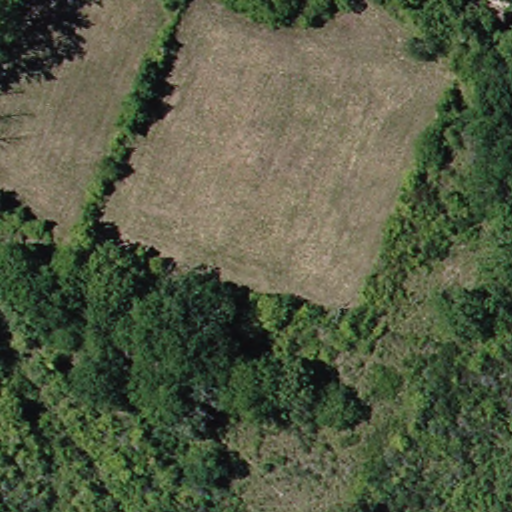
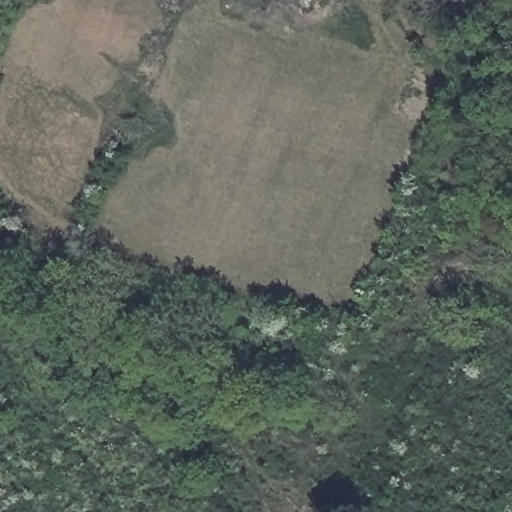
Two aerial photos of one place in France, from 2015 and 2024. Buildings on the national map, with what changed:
unchanged [(292,3),(293,0),(309,0),(302,10),(292,3)]

